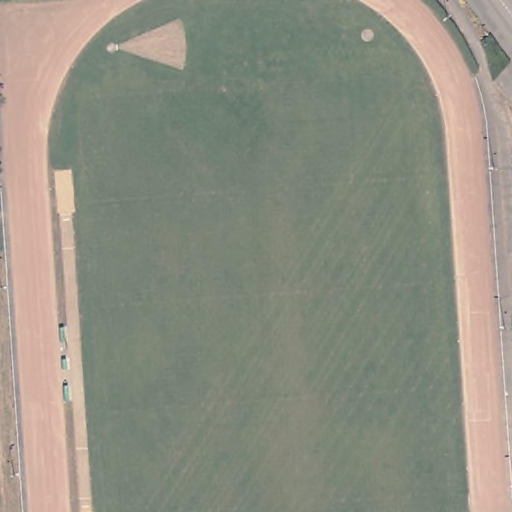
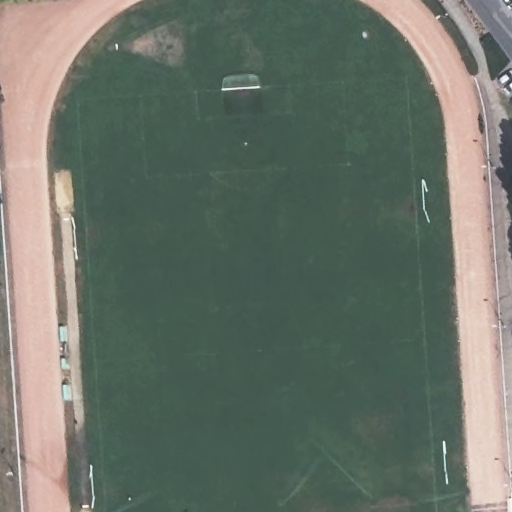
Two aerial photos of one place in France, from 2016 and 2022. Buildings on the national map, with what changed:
[]

